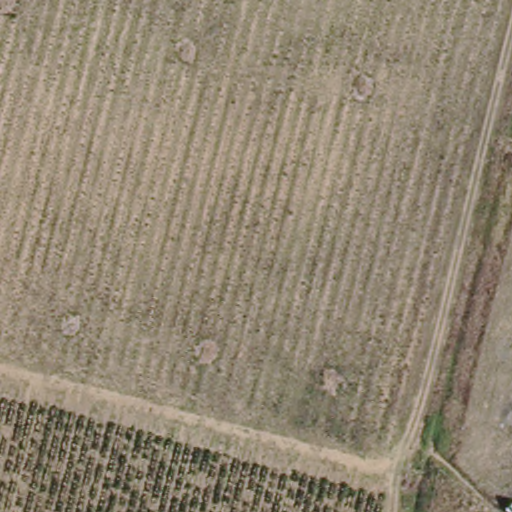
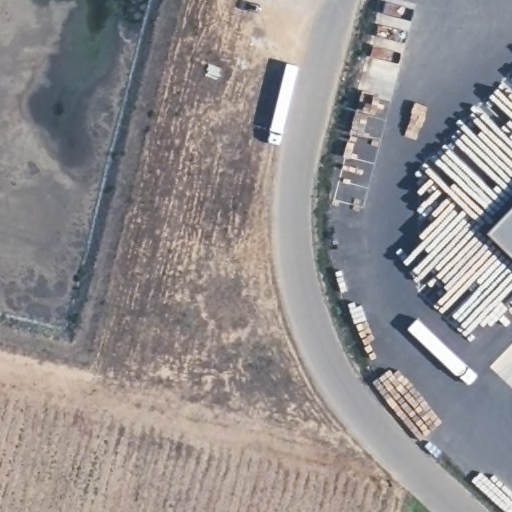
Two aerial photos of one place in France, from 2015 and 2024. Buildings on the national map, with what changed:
new [(488,233),(512,209),(512,257),(488,233)]

